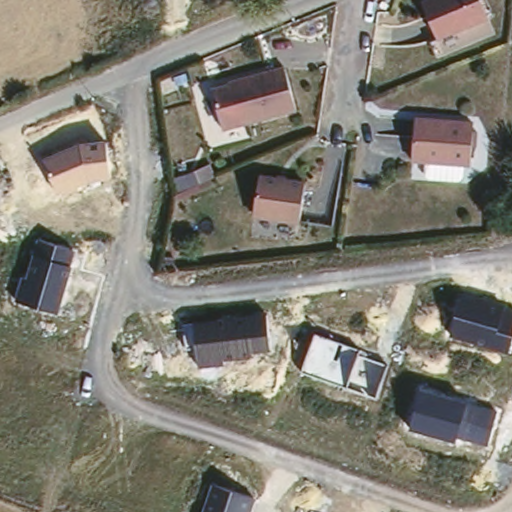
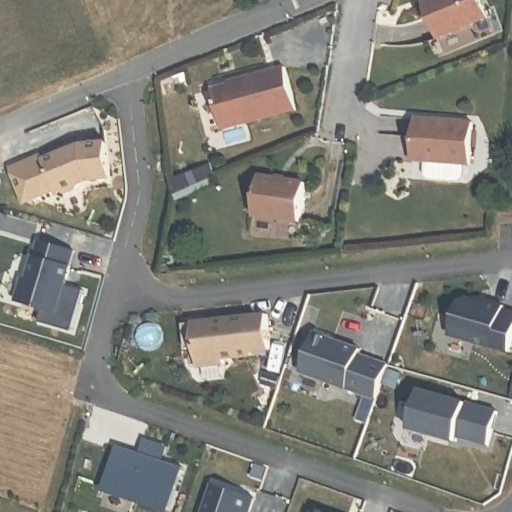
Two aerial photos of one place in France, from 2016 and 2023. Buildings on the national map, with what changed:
unchanged [(441,43),(426,7),(445,0),(483,0),(492,22),(441,43)]
unchanged [(295,114),(222,134),(211,95),(239,87),(239,85),(284,72),(295,114)]
unchanged [(464,160),(408,155),(410,113),(468,118),(464,160)]
unchanged [(112,180),(86,182),(60,197),(44,159),(79,144),(107,140),(112,180)]
unchanged [(215,175),(191,185),(188,175),(211,165),(215,175)]
unchanged [(299,227),(253,220),(258,181),(304,188),(299,227)]
unchanged [(75,249),(70,266),(73,267),(59,314),(15,300),(23,273),(26,274),(36,238),(75,249)]
unchanged [(507,311),(512,312),(512,350),(511,354),(449,337),(458,301),(470,294),(508,304),(507,311)]
unchanged [(272,351),(252,355),(253,357),(225,361),(225,365),(198,369),(195,347),(186,348),(183,322),(269,310),(272,351)]
unchanged [(362,347),(359,355),(389,365),(377,397),(300,372),(314,332),(362,347)]
unchanged [(500,408),(489,446),(458,438),(456,443),(409,429),(420,389),(500,408)]
new [(116,445),(124,448),(138,452),(143,438),(167,445),(162,460),(182,467),(169,506),(103,485),(114,449),(116,445)]
unchanged [(255,497),(251,512),(203,512),(212,483),(255,497)]
unchanged [(316,512),(311,512),(311,510),(316,512)]

